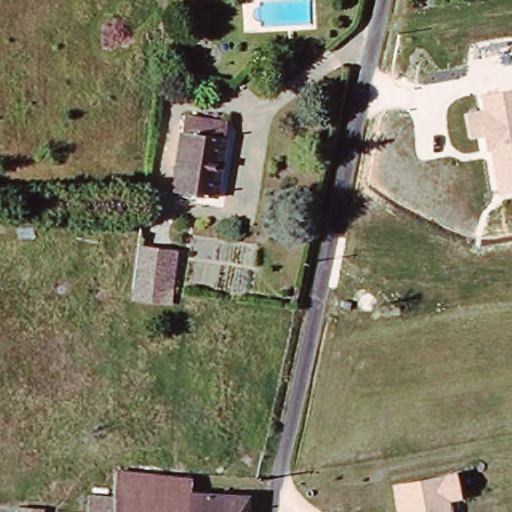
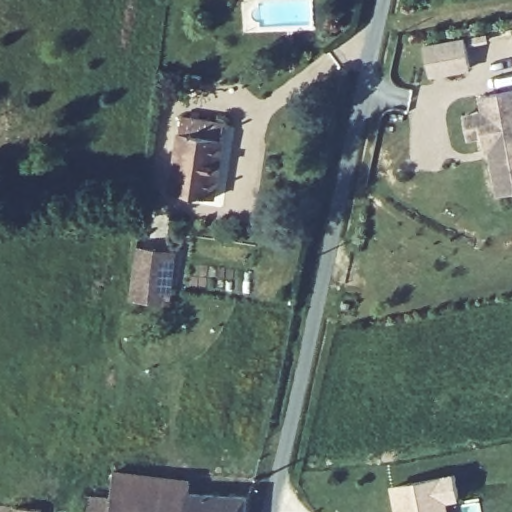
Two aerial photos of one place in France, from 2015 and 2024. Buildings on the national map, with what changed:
new [(466,36),(472,70),(432,76),(426,43),(466,36)]
unchanged [(483,136),(469,139),(465,112),(482,110),(480,96),(512,90),(512,192),(498,195),(489,151),(486,151),(483,136)]
unchanged [(219,202),(176,195),(187,117),(231,124),(219,202)]
unchanged [(136,295),(141,253),(161,256),(179,258),(176,282),(173,300),(136,295)]
unchanged [(192,500),(220,501),(219,512),(116,512),(118,495),(121,470),(194,478),(192,500)]
unchanged [(391,484),(455,471),(460,499),(449,501),(450,512),(396,512),(391,484)]
unchanged [(116,512),(87,512),(89,492),(118,495),(116,512)]
unchanged [(220,501),(249,503),(248,512),(219,512),(220,501)]

